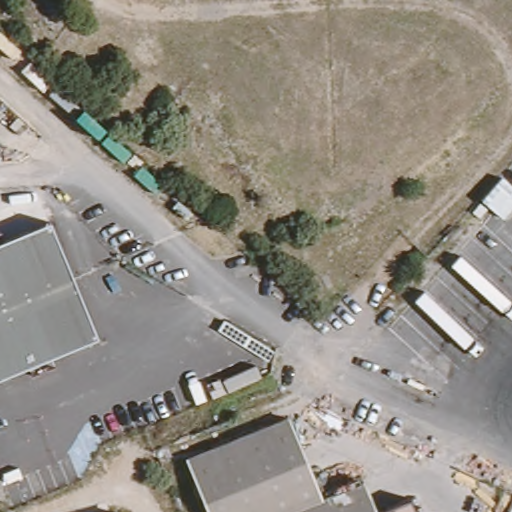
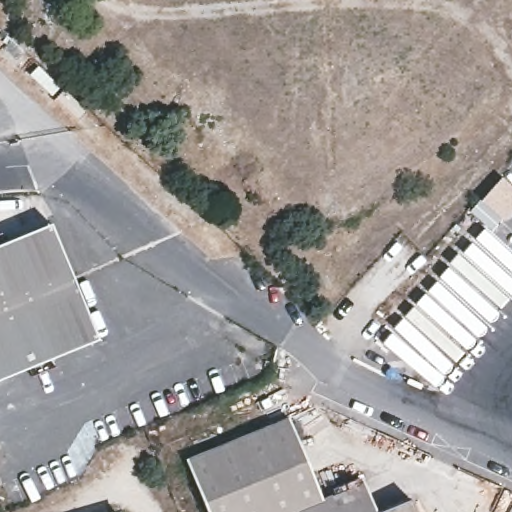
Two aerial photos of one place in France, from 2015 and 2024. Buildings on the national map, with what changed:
unchanged [(49,222),(98,341),(0,380),(0,243),(49,222)]
unchanged [(321,497),(361,482),(374,512),(207,512),(184,458),(286,418),(321,497)]
unchanged [(120,512),(101,512),(118,507),(120,512)]

